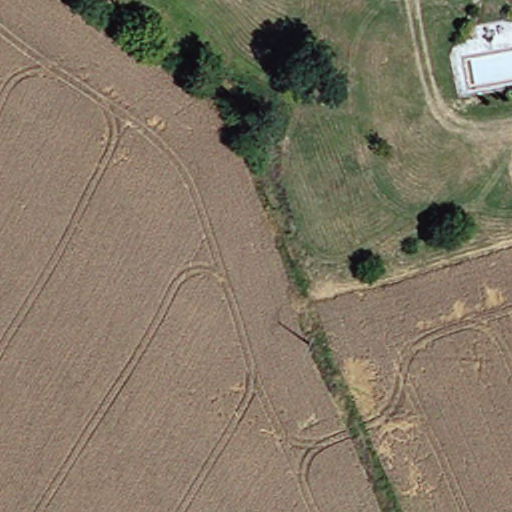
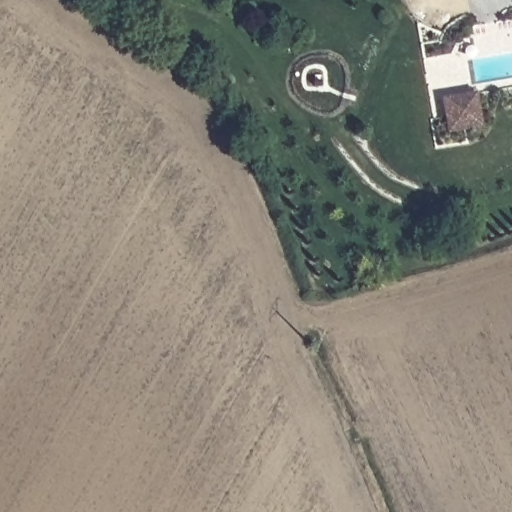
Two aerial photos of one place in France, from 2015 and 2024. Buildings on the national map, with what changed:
new [(482,129),(447,134),(441,99),(477,92),(482,129)]

